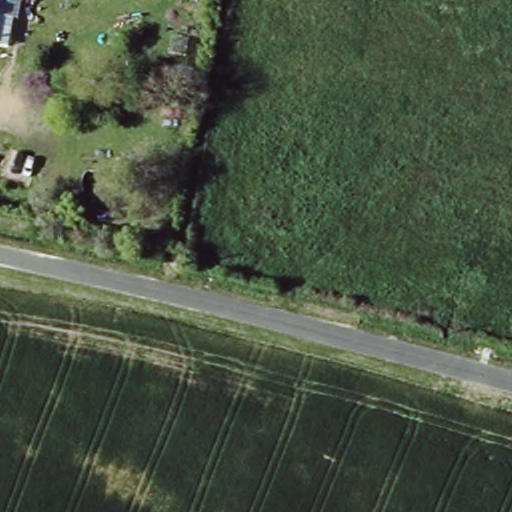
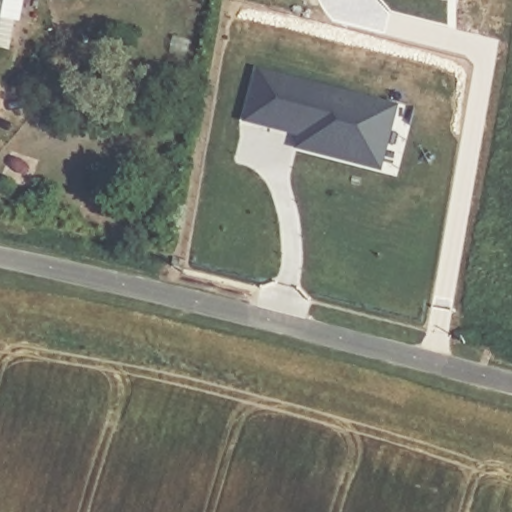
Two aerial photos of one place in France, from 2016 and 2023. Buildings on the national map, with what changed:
new [(257,75),(287,82),(272,136),(243,128),(257,75)]
new [(287,82),(315,90),(300,143),(272,136),(287,82)]
new [(300,143),(315,90),(397,111),(380,174),(298,152),(300,143)]

